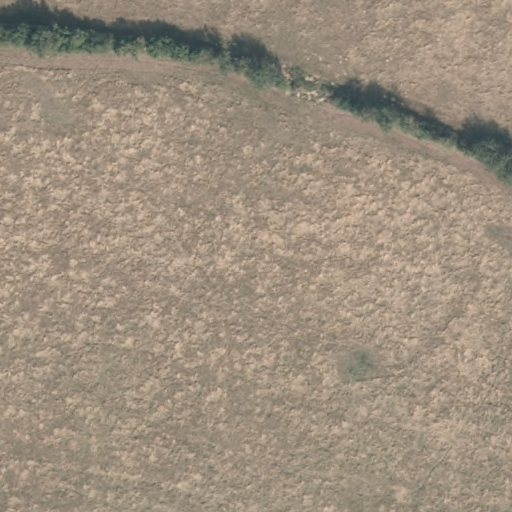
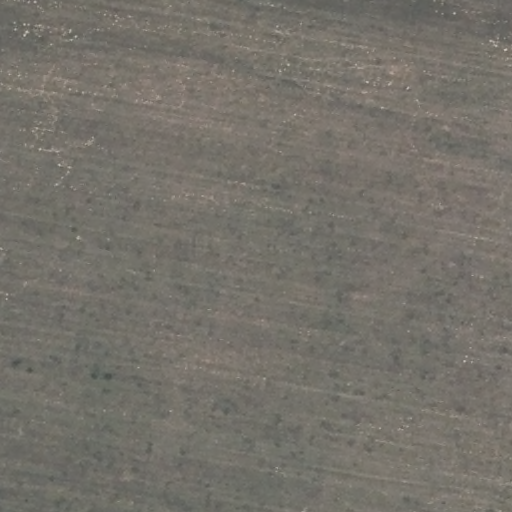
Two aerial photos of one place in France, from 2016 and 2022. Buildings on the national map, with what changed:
[]

